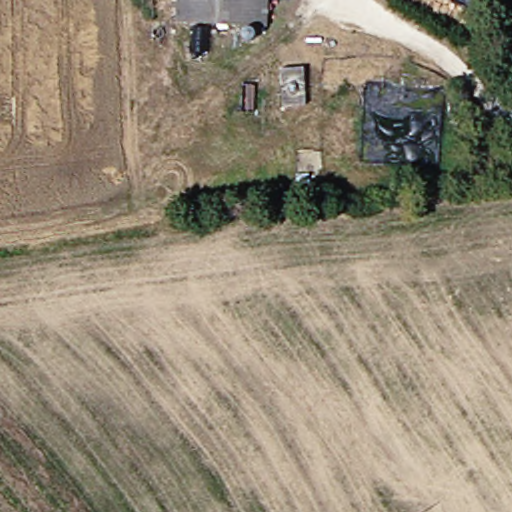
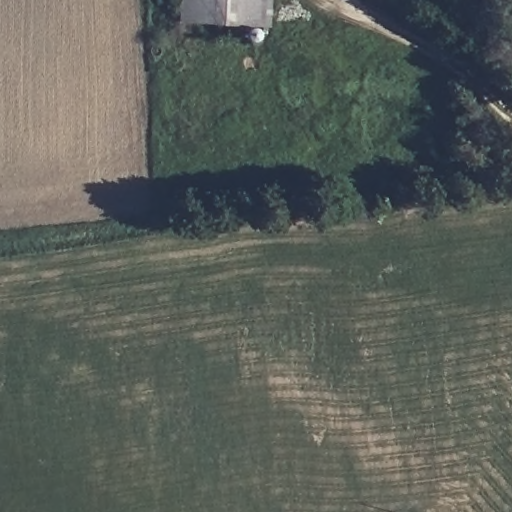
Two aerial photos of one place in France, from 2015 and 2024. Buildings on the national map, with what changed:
unchanged [(197,26),(197,0),(286,0),(287,25),(197,26)]

